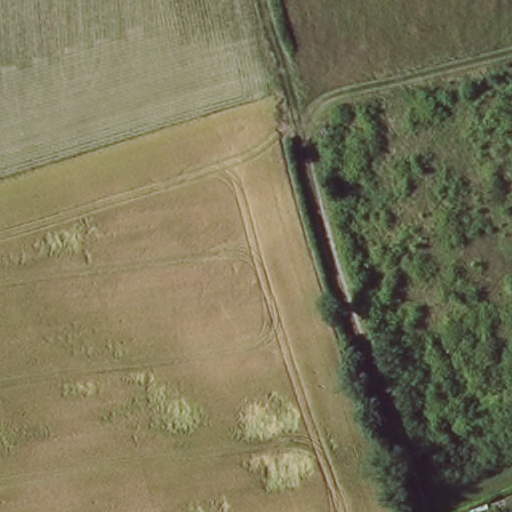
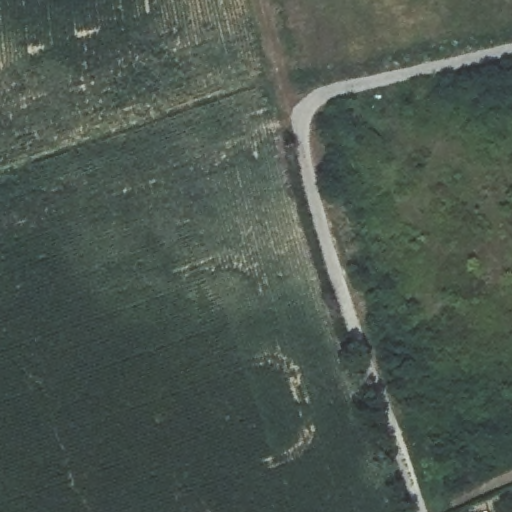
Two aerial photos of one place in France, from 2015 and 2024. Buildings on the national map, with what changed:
[]

